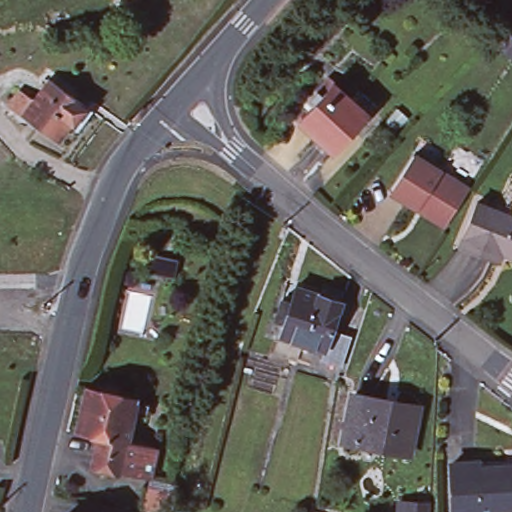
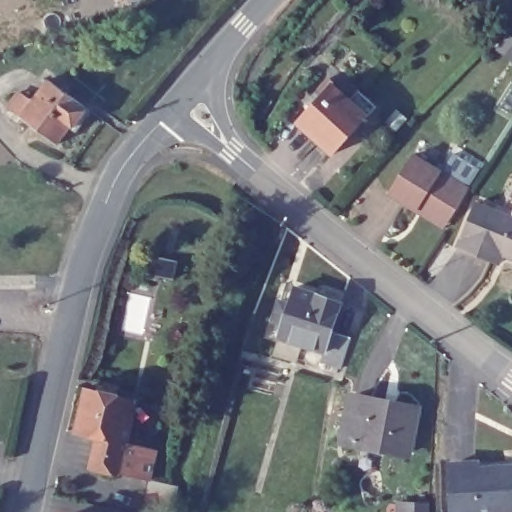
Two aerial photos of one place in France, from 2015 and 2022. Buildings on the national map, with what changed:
unchanged [(512,38),(512,57),(497,48),(506,35),(512,38)]
unchanged [(89,107),(74,128),(70,126),(57,144),(20,116),(9,107),(20,91),(32,99),(47,78),(89,107)]
unchanged [(290,125),(305,109),(300,104),(309,94),(314,98),(324,87),(342,102),(350,93),(368,109),(360,118),(325,156),(290,125)]
unchanged [(396,106),(407,116),(388,137),(377,126),(387,116),(396,106)]
unchanged [(414,209),(386,192),(410,154),(465,187),(444,221),(441,226),(414,209)]
unchanged [(487,258),(456,245),(475,202),(512,217),(512,258),(500,252),(496,262),(487,258)]
unchanged [(338,372),(319,365),(322,355),(277,341),(281,327),(272,323),(279,304),(287,306),(294,290),(318,297),(320,293),(337,298),(339,301),(337,304),(341,305),(331,335),(348,341),(338,372)]
unchanged [(147,482),(119,474),(84,466),(87,450),(94,451),(96,438),(74,432),(85,387),(102,392),(104,386),(115,388),(115,395),(135,400),(125,443),(155,451),(147,482)]
unchanged [(414,406),(408,451),(345,441),(351,397),(414,406)]
unchanged [(447,467),(472,466),(510,463),(510,471),(512,492),(512,512),(449,512),(447,467)]
unchanged [(417,507),(417,512),(392,512),(392,506),(417,507)]

